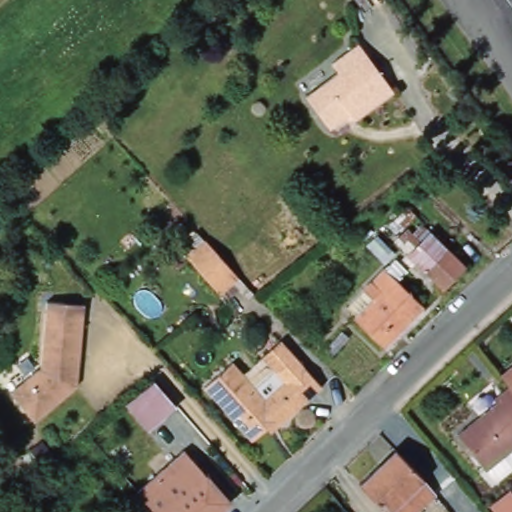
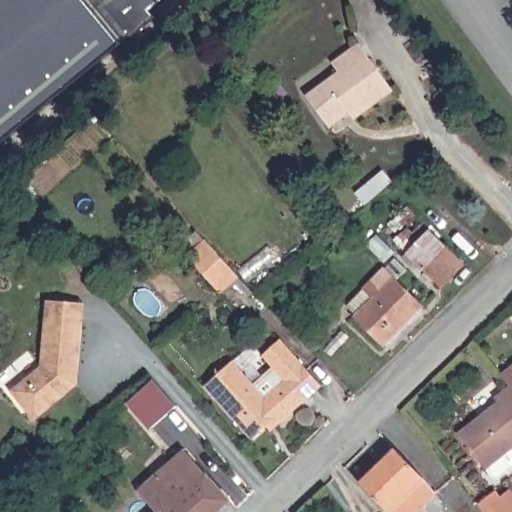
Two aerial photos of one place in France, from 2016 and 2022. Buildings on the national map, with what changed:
new [(147,9),(153,16),(121,44),(0,145),(0,0),(159,0),(147,9)]
unchanged [(354,119),(349,113),(329,128),(306,96),(338,72),(331,63),(358,43),(393,91),(354,119)]
unchanged [(512,164),(502,153),(510,146),(512,149),(512,164)]
unchanged [(463,260),(442,282),(407,248),(429,226),(463,260)]
unchanged [(220,294),(186,256),(205,240),(239,278),(220,294)]
unchanged [(422,307),(385,345),(346,306),(383,269),(422,307)]
unchanged [(34,421),(10,391),(40,367),(46,301),(58,301),(83,303),(82,322),(78,368),(76,385),(34,421)]
unchanged [(266,427),(251,440),(204,386),(232,361),(264,397),(284,380),(279,375),(297,359),(321,386),(281,422),(270,431),(266,427)]
unchanged [(500,370),(512,361),(512,385),(509,381),(500,370)]
new [(151,379),(175,405),(148,428),(124,401),(151,379)]
unchanged [(457,429),(497,397),(493,393),(509,381),(512,385),(512,444),(486,465),(457,429)]
unchanged [(158,512),(137,486),(184,445),(229,496),(211,512),(158,512)]
unchanged [(417,512),(387,512),(359,483),(394,449),(423,478),(436,493),(417,512)]
new [(512,512),(496,512),(492,508),(512,492),(512,512)]
unchanged [(27,512),(30,509),(32,512),(27,512)]

